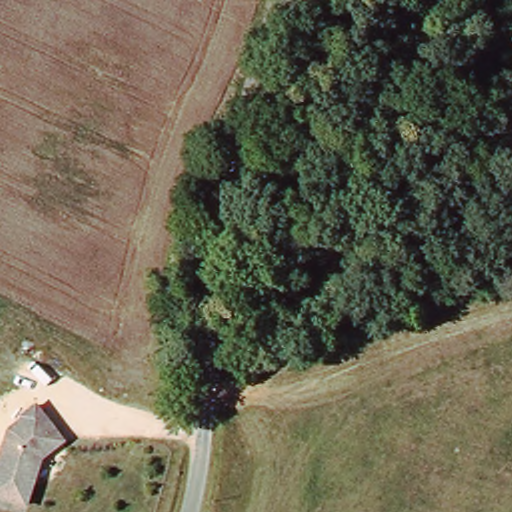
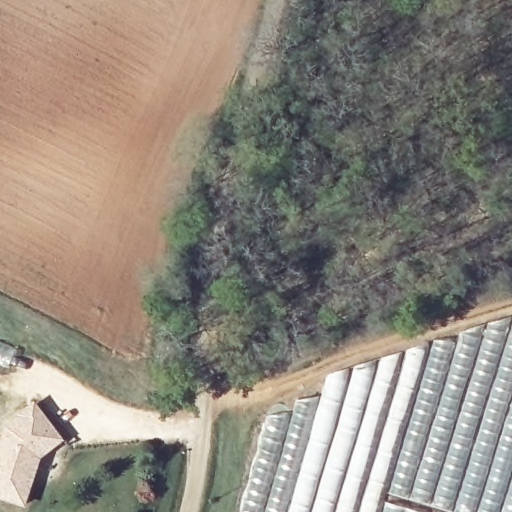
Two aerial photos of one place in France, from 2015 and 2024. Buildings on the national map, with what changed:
new [(315,407),(316,403),(325,374),(429,342),(442,341),(457,342),(459,334),(482,336),(485,326),(498,322),(500,330),(507,332),(512,318),(512,512),(286,512),(315,407)]
new [(244,493),(267,417),(288,420),(295,400),(315,407),(286,512),(238,512),(244,493)]
unchanged [(0,495),(0,440),(5,427),(30,402),(57,438),(35,456),(19,502),(0,495)]

